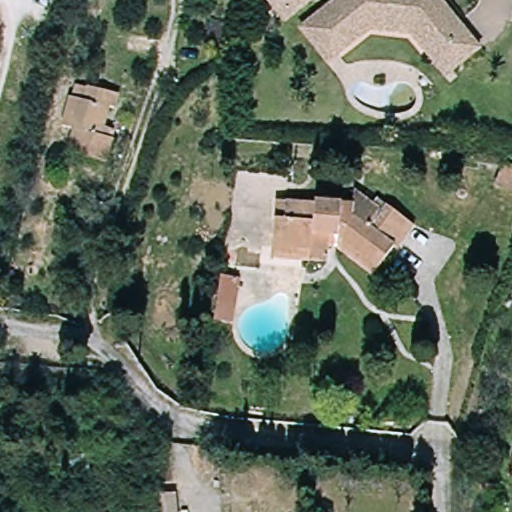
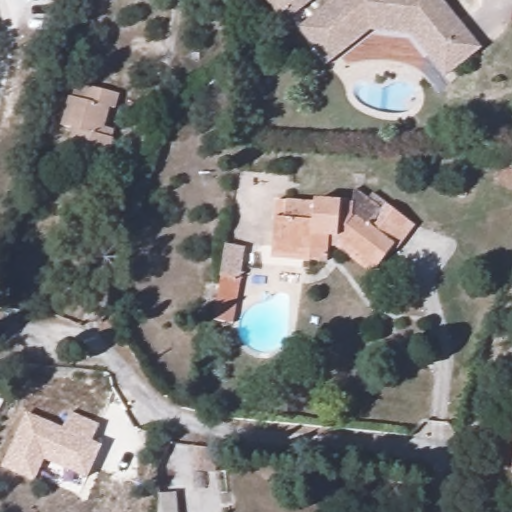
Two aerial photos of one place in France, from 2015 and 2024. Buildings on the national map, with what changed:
unchanged [(283,25),(263,0),(310,0),(312,3),(283,25)]
unchanged [(404,37),(364,33),(322,67),(293,30),(331,0),(436,0),(477,50),(439,81),(404,37)]
unchanged [(79,100),(84,83),(120,94),(115,111),(108,109),(99,137),(111,141),(104,164),(63,151),(70,128),(58,124),(66,96),(79,100)]
unchanged [(512,166),(512,187),(498,181),(504,163),(512,166)]
unchanged [(329,268),(306,265),(270,260),(272,244),(276,219),(286,220),(289,198),(316,201),(354,206),(354,193),(383,213),(386,209),(418,230),(402,254),(394,249),(379,271),(373,280),(331,253),(329,268)]
unchanged [(210,309),(218,268),(237,271),(229,312),(210,309)]
new [(88,479),(45,460),(36,481),(1,466),(26,411),(63,428),(70,411),(100,424),(93,442),(103,446),(88,479)]
unchanged [(512,449),(512,474),(509,474),(512,449)]
unchanged [(170,508),(170,512),(157,512),(157,508),(170,508)]

